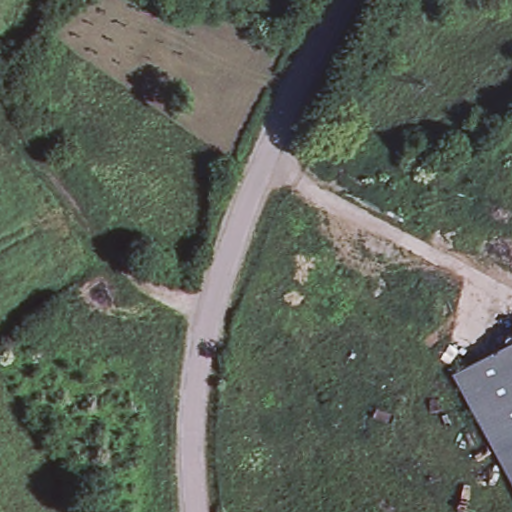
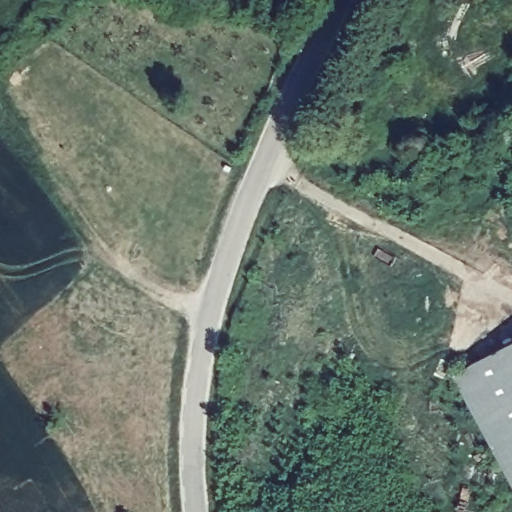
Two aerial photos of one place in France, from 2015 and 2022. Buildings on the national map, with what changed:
unchanged [(454,381),(512,347),(512,480),(454,381)]

